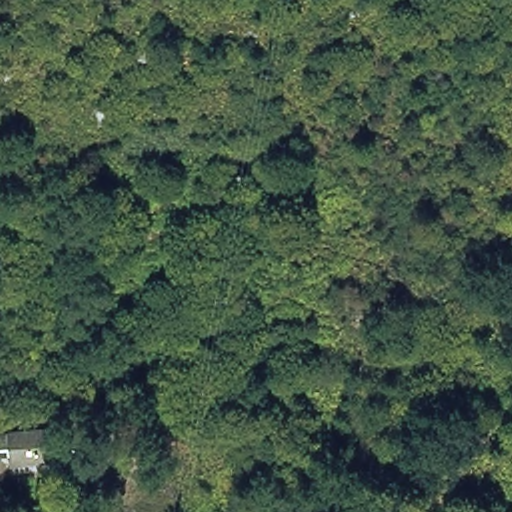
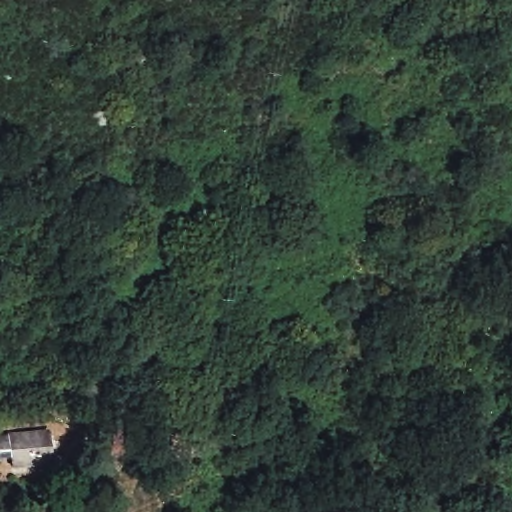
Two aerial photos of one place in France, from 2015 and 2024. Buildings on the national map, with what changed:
unchanged [(12,461),(0,462),(0,435),(52,429),(56,466),(13,470),(12,461)]

